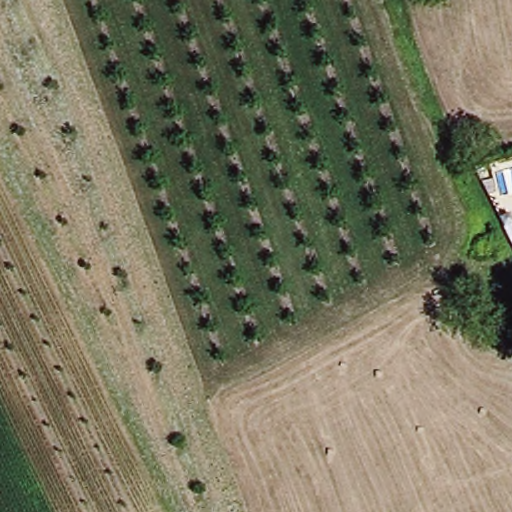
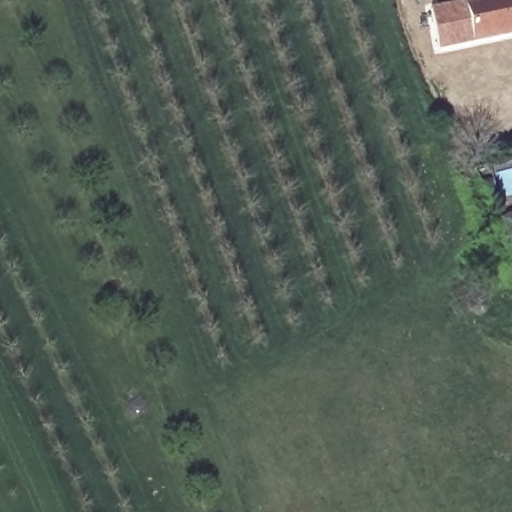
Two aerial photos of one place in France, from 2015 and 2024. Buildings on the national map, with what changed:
new [(455,0),(463,0),(473,42),(438,50),(430,5),(455,0)]
new [(473,42),(463,0),(512,0),(512,35),(473,42)]
unchanged [(507,331),(505,318),(512,317),(512,330),(507,331)]

